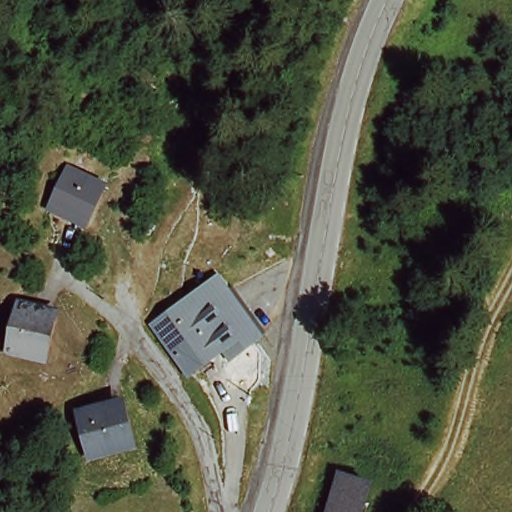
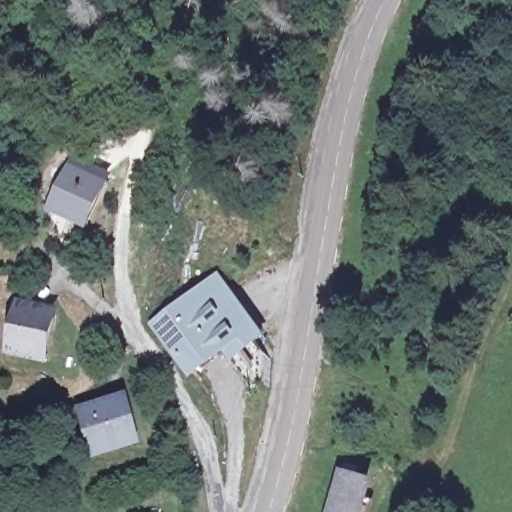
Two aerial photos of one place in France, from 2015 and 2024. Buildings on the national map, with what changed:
unchanged [(88,169),(90,209),(54,210),(55,170),(88,169)]
unchanged [(192,310),(229,286),(252,316),(250,322),(185,368),(148,325),(182,302),(192,310)]
unchanged [(51,308),(42,341),(12,332),(21,301),(51,308)]
unchanged [(120,399),(129,438),(91,446),(81,406),(120,399)]
unchanged [(363,512),(328,512),(341,475),(373,483),(363,512)]

